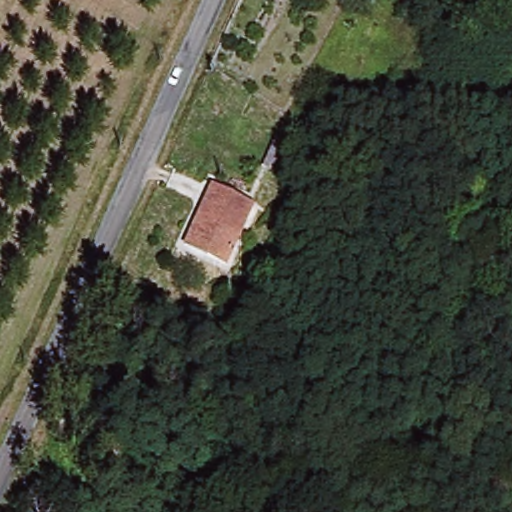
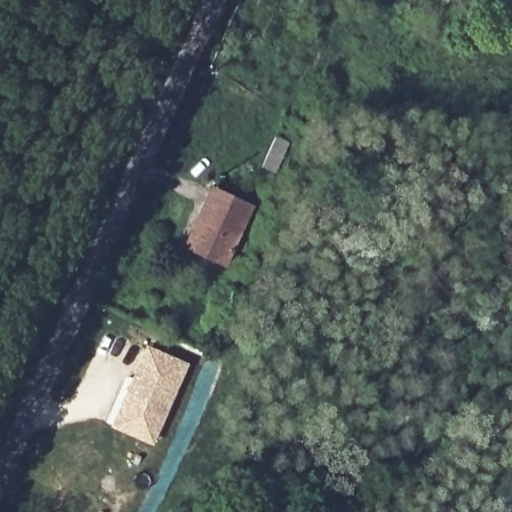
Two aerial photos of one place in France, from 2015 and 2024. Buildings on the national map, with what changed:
unchanged [(259,212),(232,266),(182,241),(210,185),(259,212)]
new [(144,343),(189,363),(153,445),(110,425),(144,343)]

